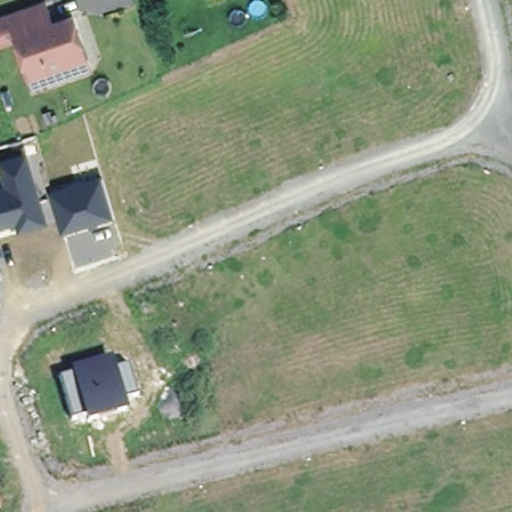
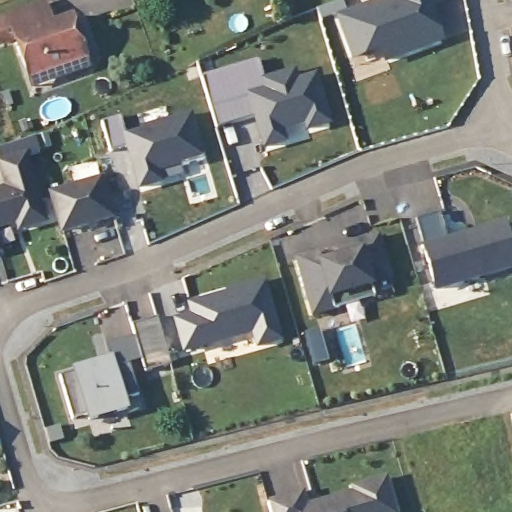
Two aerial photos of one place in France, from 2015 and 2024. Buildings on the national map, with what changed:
new [(432,9),(444,43),(384,64),(380,51),(352,59),(335,15),(376,0),(440,0),(442,5),(432,9)]
unchanged [(33,82),(31,74),(20,32),(4,37),(0,24),(0,14),(52,1),(57,22),(78,16),(89,60),(91,67),(33,82)]
new [(259,60),(264,77),(296,72),(297,75),(319,72),(332,127),(309,132),(311,139),(260,151),(251,118),(216,127),(203,76),(259,60)]
new [(120,117),(124,135),(193,114),(206,160),(188,166),(191,175),(137,192),(126,146),(110,150),(105,120),(120,117)]
unchanged [(26,151),(47,222),(17,230),(15,225),(0,227),(0,181),(1,181),(0,177),(0,158),(26,151)]
unchanged [(101,173),(113,215),(61,229),(48,187),(101,173)]
new [(505,220),(512,245),(512,269),(436,290),(416,220),(440,212),(446,237),(505,220)]
new [(317,250),(319,260),(360,247),(358,240),(379,233),(392,280),(372,286),(372,287),(331,300),(334,312),(312,318),(295,256),(317,250)]
unchanged [(3,252),(0,252),(0,241),(3,252)]
new [(182,280),(189,301),(266,279),(283,341),(254,349),(250,338),(182,356),(170,317),(165,318),(158,288),(182,280)]
new [(318,326),(329,361),(312,366),(302,331),(318,326)]
unchanged [(73,375),(71,366),(113,356),(117,369),(128,366),(139,398),(126,402),(128,408),(86,420),(84,416),(71,420),(60,378),(73,375)]
new [(304,490),(308,505),(351,491),(350,486),(388,474),(398,512),(271,512),(267,498),(304,490)]

